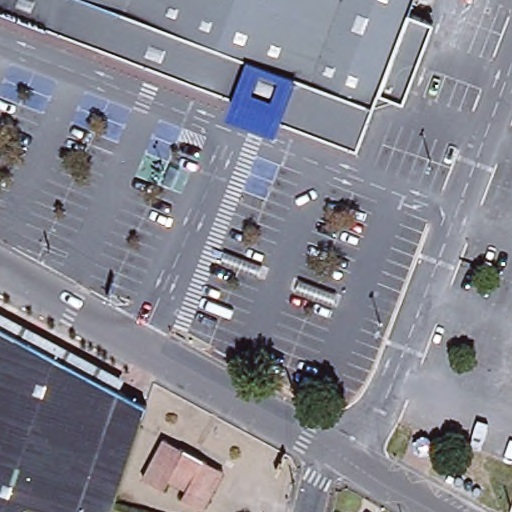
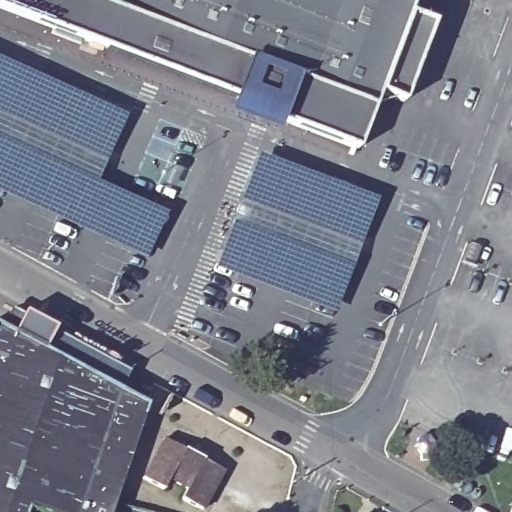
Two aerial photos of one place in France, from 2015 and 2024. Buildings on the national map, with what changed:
unchanged [(437,14),(399,107),(374,97),(355,144),(352,152),(238,107),(240,103),(0,14),(0,0),(412,0),(410,6),(437,14)]
new [(88,168),(84,177),(166,214),(146,259),(0,193),(0,59),(126,116),(100,173),(88,168)]
new [(249,160),(369,203),(332,308),(211,265),(249,160)]
unchanged [(110,512),(32,512),(25,509),(24,512),(0,512),(0,329),(146,408),(113,504),(110,512)]
unchanged [(167,441),(186,451),(184,456),(202,466),(206,461),(224,473),(203,511),(184,500),(188,492),(170,482),(166,490),(146,479),(167,441)]

